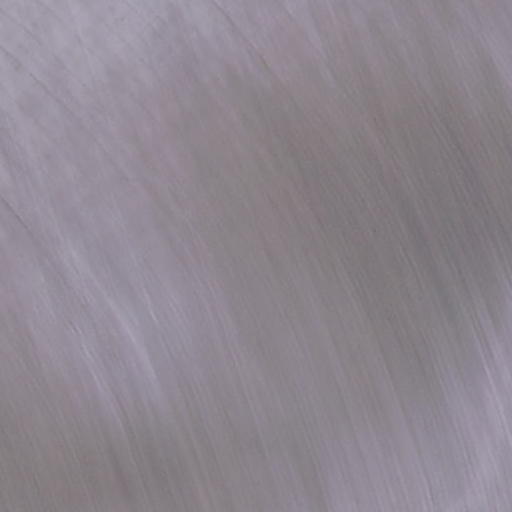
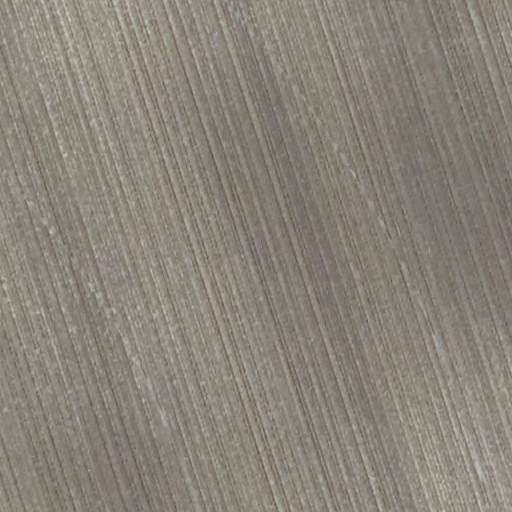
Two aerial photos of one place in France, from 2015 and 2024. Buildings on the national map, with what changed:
[]

